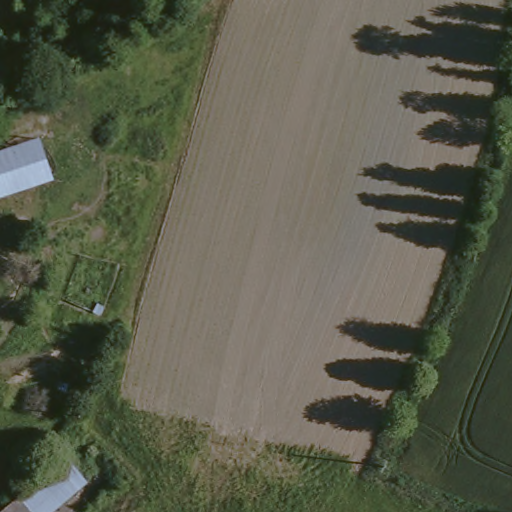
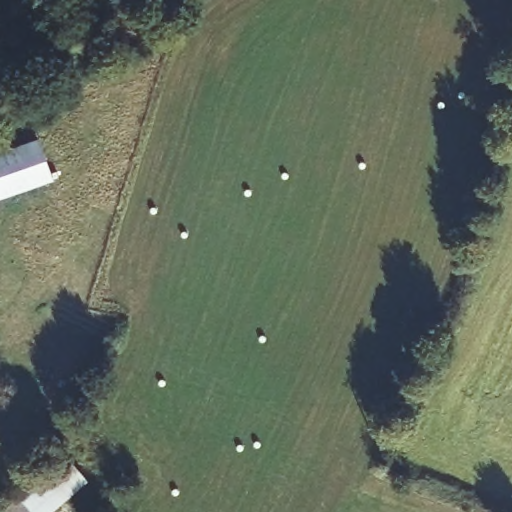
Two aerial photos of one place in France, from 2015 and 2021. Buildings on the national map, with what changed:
unchanged [(55,170),(0,194),(0,150),(39,133),(55,170)]
unchanged [(0,512),(0,508),(71,448),(92,478),(55,512),(0,512)]

